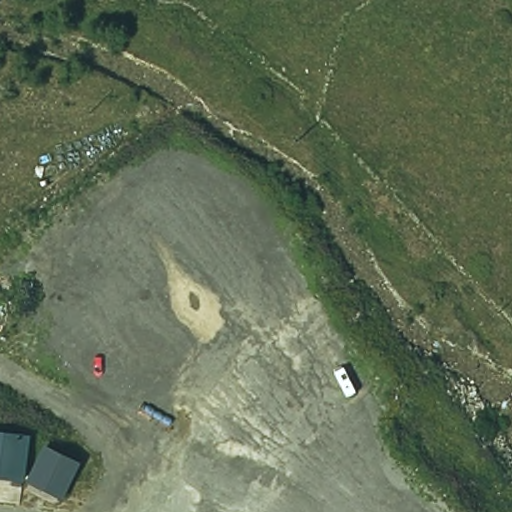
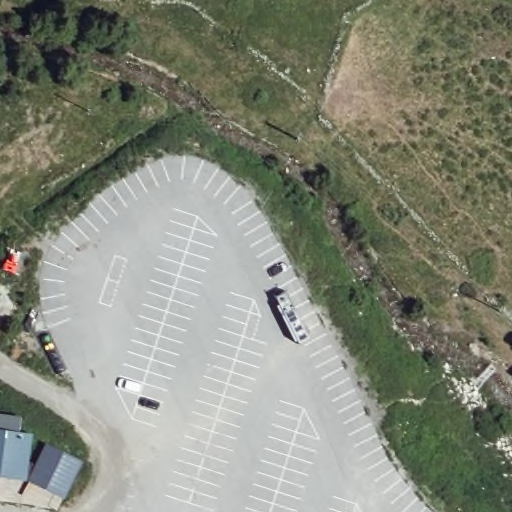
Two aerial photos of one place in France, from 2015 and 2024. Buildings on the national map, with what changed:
unchanged [(0,428),(37,431),(32,479),(0,476),(0,428)]
unchanged [(50,442),(89,459),(71,498),(32,479),(50,442)]

